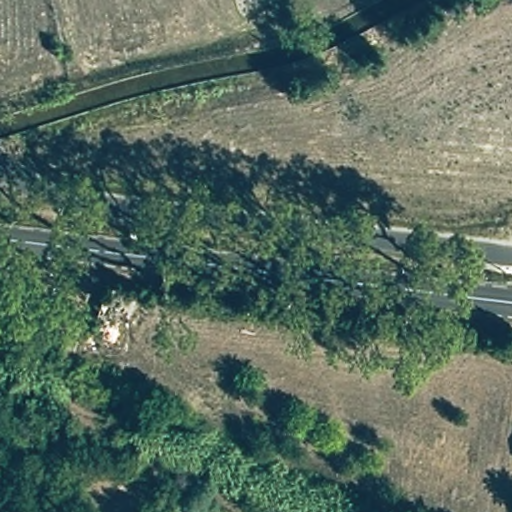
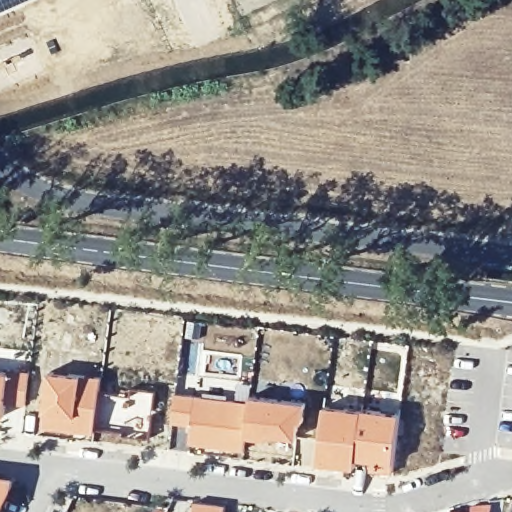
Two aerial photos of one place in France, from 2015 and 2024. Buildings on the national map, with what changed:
new [(0,15),(0,0),(34,0),(0,15)]
new [(190,342),(203,344),(202,353),(205,353),(203,375),(253,383),(251,394),(250,400),(199,394),(199,391),(185,389),(190,342)]
new [(10,371),(31,372),(27,405),(7,403),(6,413),(0,413),(0,371),(10,371)]
new [(50,372),(101,376),(96,431),(44,426),(50,372)]
new [(175,393),(184,393),(199,394),(250,400),(247,436),(245,450),(188,444),(191,426),(172,423),(175,393)]
new [(250,400),(251,394),(308,401),(299,438),(247,436),(250,400)]
new [(323,405),(364,407),(358,459),(357,467),(317,462),(323,405)]
new [(364,407),(402,412),(394,473),(369,470),(371,460),(358,459),(364,407)]
new [(16,477),(9,495),(1,512),(0,512),(0,475),(16,477)]
new [(226,507),(225,512),(194,512),(195,503),(226,507)]
new [(166,512),(153,512),(157,505),(168,508),(166,512)]
new [(459,512),(450,512),(451,511),(459,512)]

